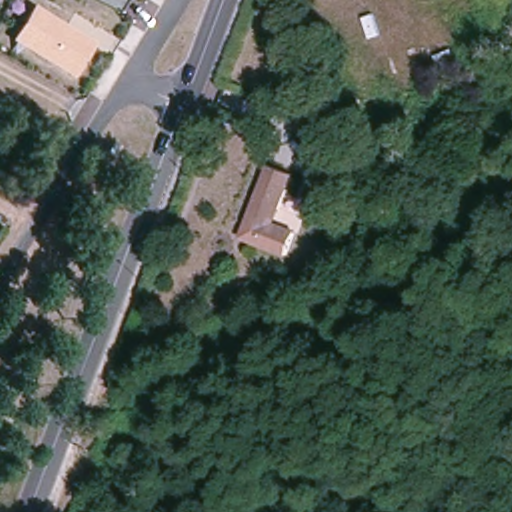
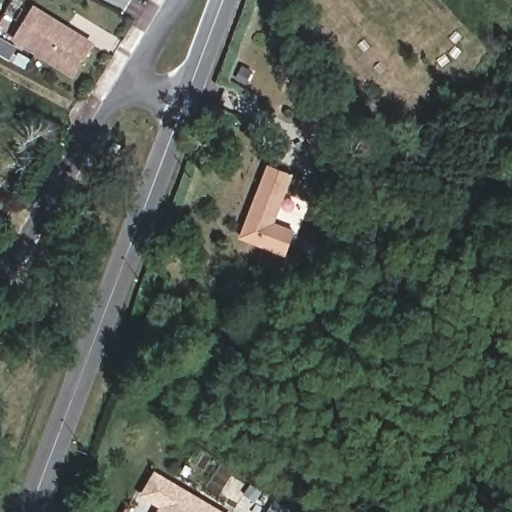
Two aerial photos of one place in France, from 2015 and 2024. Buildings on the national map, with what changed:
unchanged [(512,0),(512,6),(509,0),(512,0)]
unchanged [(70,76),(12,38),(33,5),(95,44),(70,76)]
unchanged [(343,132),(318,143),(306,124),(331,107),(343,132)]
unchanged [(291,176),(273,224),(288,232),(279,252),(235,237),(265,165),(291,176)]
new [(159,506),(140,497),(154,470),(227,512),(156,512),(159,506)]

